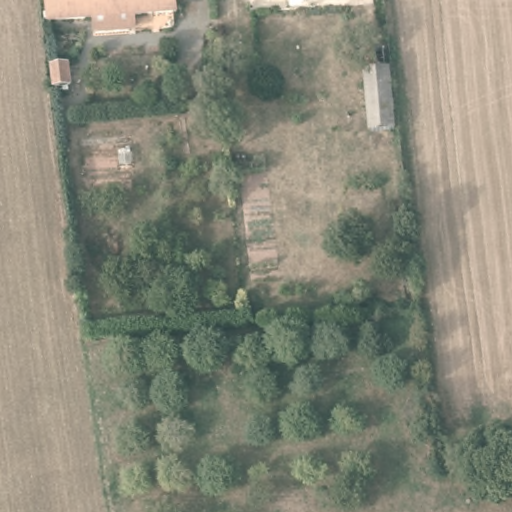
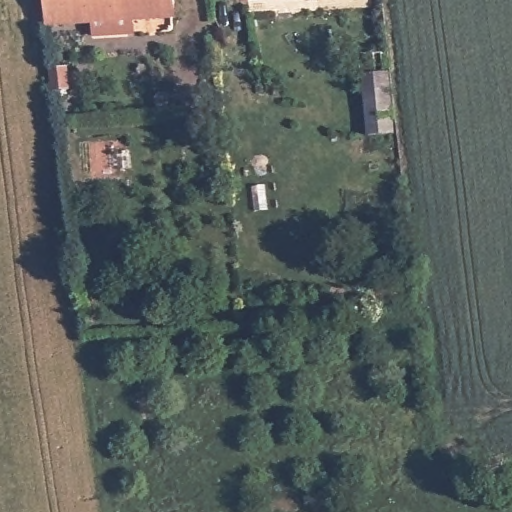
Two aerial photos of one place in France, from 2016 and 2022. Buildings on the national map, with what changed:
unchanged [(138,31),(105,34),(102,14),(55,18),(53,0),(179,0),(180,6),(136,9),(138,31)]
unchanged [(367,135),(362,48),(382,45),(398,133),(367,135)]
unchanged [(52,89),(51,83),(50,71),(69,69),(70,86),(52,89)]

